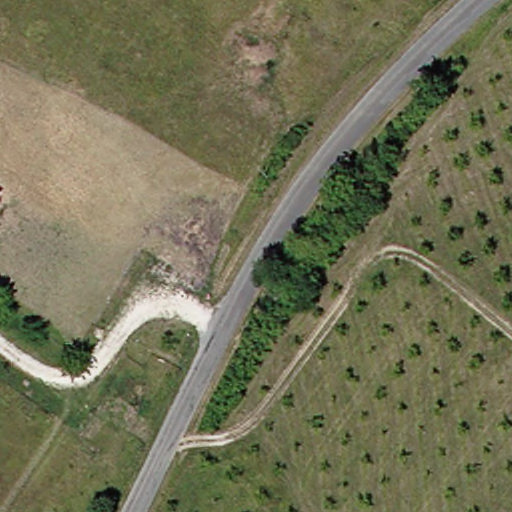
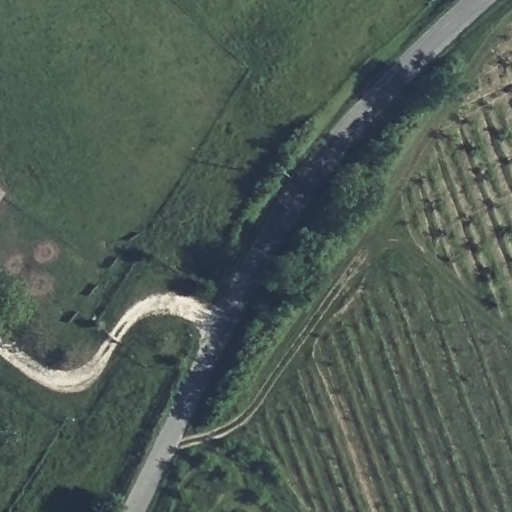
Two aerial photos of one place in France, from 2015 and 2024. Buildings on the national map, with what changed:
unchanged [(0,198),(0,191),(3,193),(0,198)]

